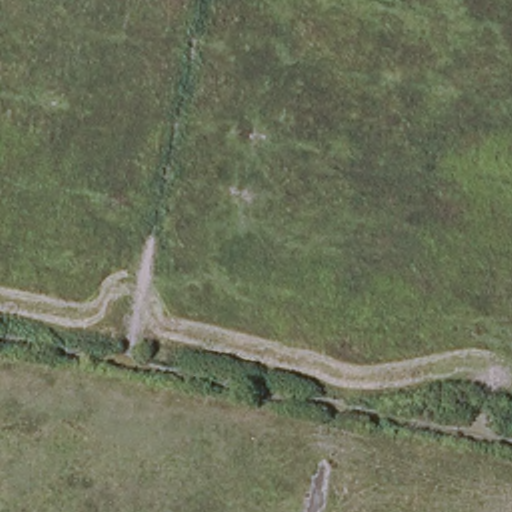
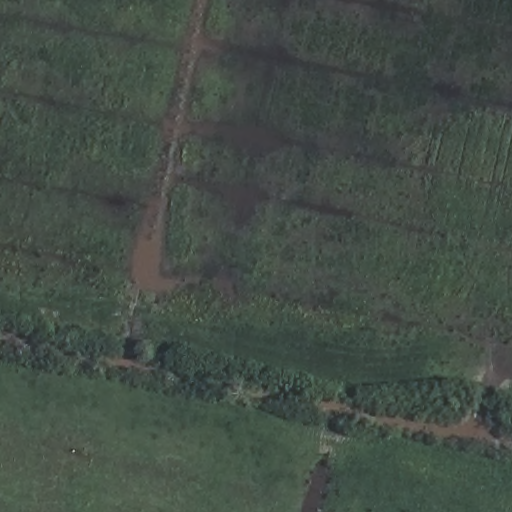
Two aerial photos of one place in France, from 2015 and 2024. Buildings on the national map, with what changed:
[]

